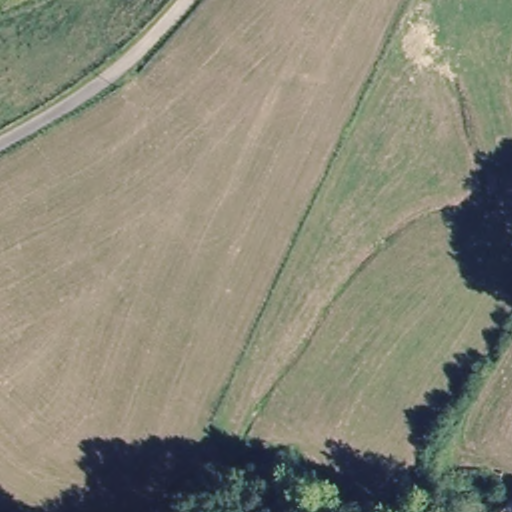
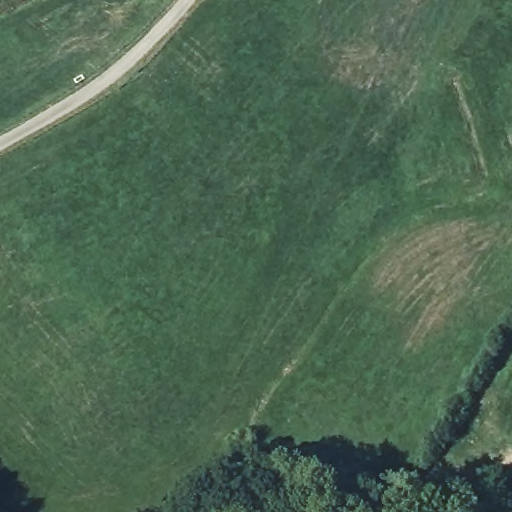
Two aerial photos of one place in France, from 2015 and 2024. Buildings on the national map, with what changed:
[]

